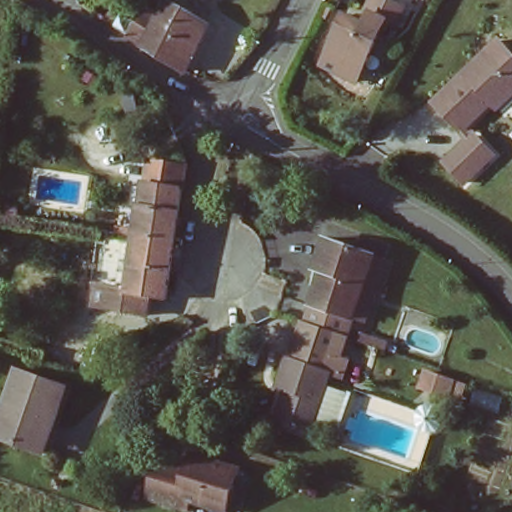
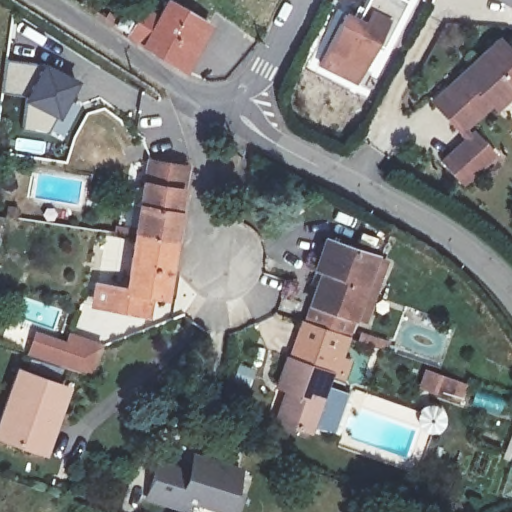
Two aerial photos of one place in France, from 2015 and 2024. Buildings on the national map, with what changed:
unchanged [(159,13),(167,0),(170,0),(212,27),(184,72),(171,64),(158,55),(158,52),(127,32),(116,26),(122,13),(134,20),(143,3),(143,4),(159,13)]
unchanged [(366,66),(346,56),(343,62),(321,51),(339,14),(360,25),(367,10),(364,8),(368,0),(380,0),(402,12),(394,29),(386,25),(366,66)]
new [(512,0),(512,8),(496,0),(512,0)]
unchanged [(466,132),(440,104),(505,46),(512,53),(512,91),(466,132)]
new [(23,94),(1,91),(6,58),(37,61),(77,77),(58,117),(54,115),(47,132),(21,126),(24,102),(24,95),(23,94)]
unchanged [(492,160),(466,184),(447,164),(472,140),(492,160)]
unchanged [(181,187),(173,244),(172,244),(147,240),(136,238),(144,182),(181,187)]
unchanged [(147,240),(172,244),(173,244),(164,298),(148,297),(147,311),(96,306),(98,290),(129,293),(136,238),(147,240)]
unchanged [(376,257),(348,345),(304,330),(317,292),(309,290),(325,242),(376,257)]
unchanged [(348,345),(314,440),(280,429),(291,397),(280,394),(290,363),(293,364),(304,330),(348,345)]
new [(103,348),(91,377),(60,367),(29,357),(36,336),(67,346),(70,338),(103,348)]
unchanged [(61,386),(56,401),(62,402),(45,452),(0,436),(0,420),(17,371),(61,386)]
unchanged [(229,508),(218,504),(184,493),(181,503),(141,491),(142,488),(152,457),(185,467),(191,450),(232,462),(225,483),(237,487),(229,508)]

